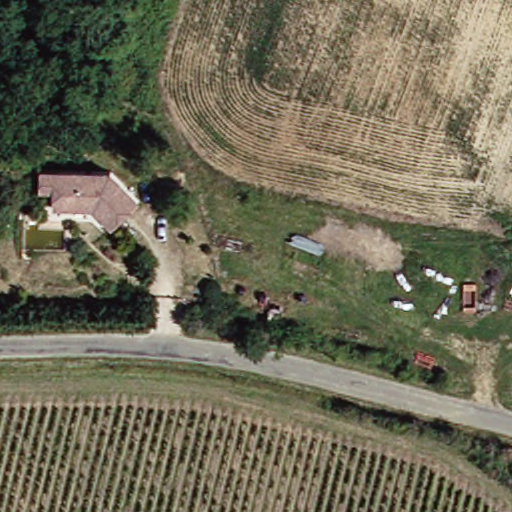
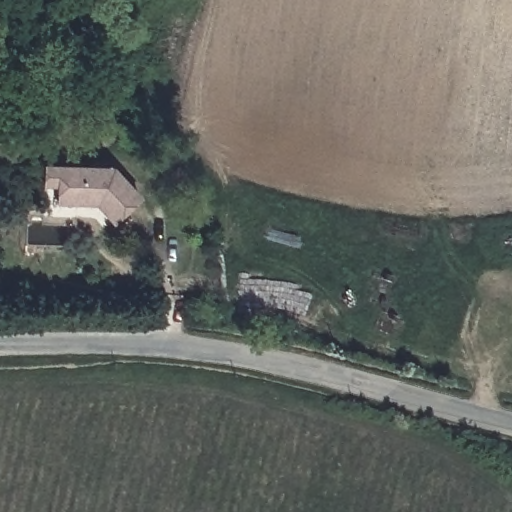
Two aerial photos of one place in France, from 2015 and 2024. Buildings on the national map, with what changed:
unchanged [(148,200),(120,222),(103,202),(64,199),(65,182),(49,180),(50,160),(66,161),(119,167),(148,200)]

